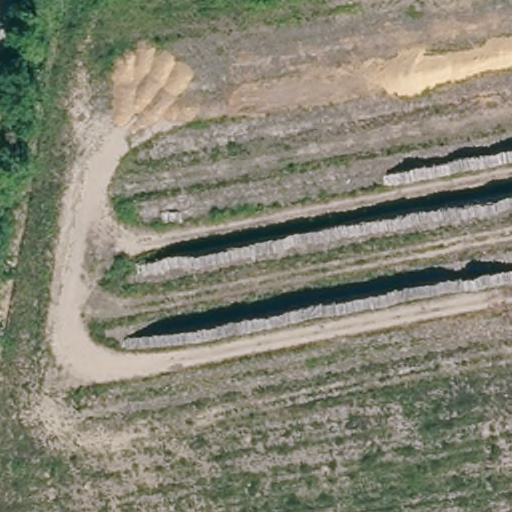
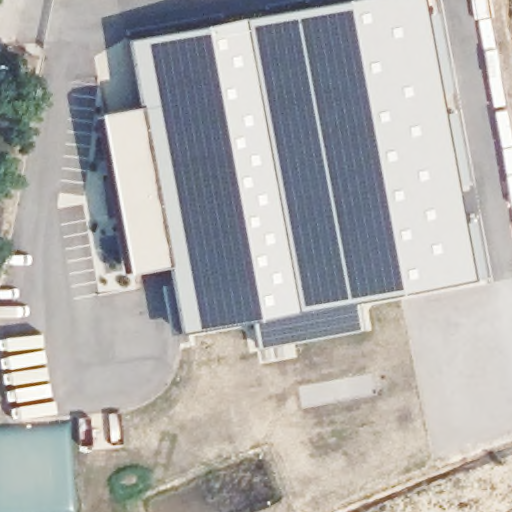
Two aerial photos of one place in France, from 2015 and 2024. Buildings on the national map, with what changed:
new [(260,348),(256,318),(183,329),(169,331),(162,284),(174,282),(170,264),(132,271),(102,112),(140,105),(130,38),(335,0),(425,0),(476,278),(358,300),(363,327),(260,348)]

